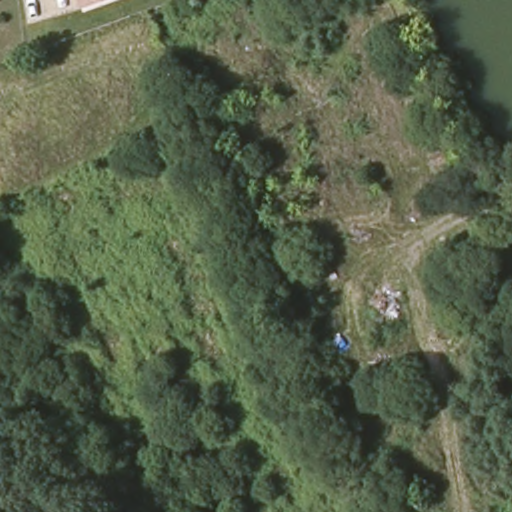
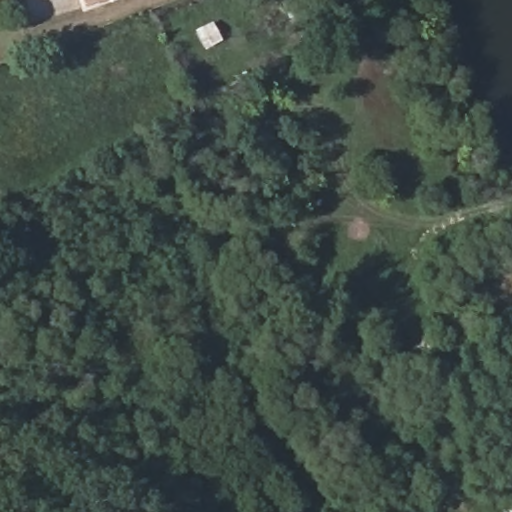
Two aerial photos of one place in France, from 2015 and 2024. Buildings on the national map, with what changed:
unchanged [(82,0),(100,0),(84,5),(82,0)]

